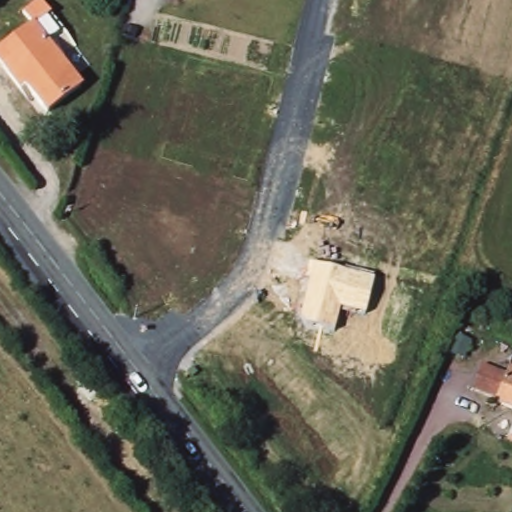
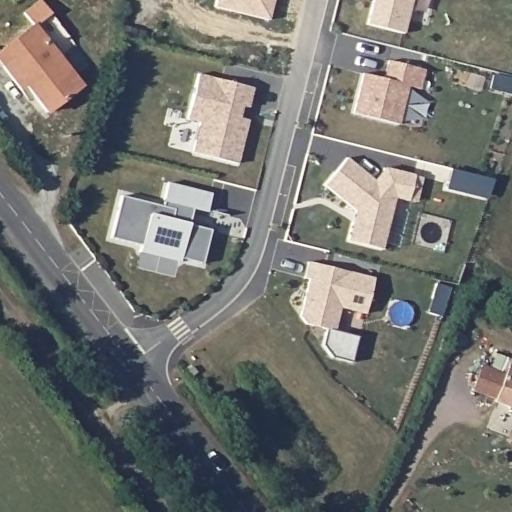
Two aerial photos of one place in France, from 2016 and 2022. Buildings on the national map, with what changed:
unchanged [(33,25),(23,12),(40,0),(41,0),(51,14),(34,26),(81,86),(47,112),(26,86),(21,89),(0,63),(0,51),(33,25)]
new [(374,0),(413,0),(404,33),(368,24),(374,0)]
new [(363,73),(384,79),(389,61),(425,70),(420,89),(408,86),(398,125),(353,113),(363,73)]
new [(254,88),(249,107),(243,106),(240,118),(249,120),(238,164),(193,152),(201,122),(188,119),(199,74),(254,88)]
new [(324,186),(346,159),(374,181),(385,168),(414,176),(408,201),(394,198),(381,250),(348,241),(352,223),(355,211),(324,186)]
new [(110,237),(121,195),(161,206),(163,200),(167,183),(211,194),(206,211),(192,208),(188,224),(210,230),(202,263),(180,258),(179,262),(139,252),(140,248),(141,245),(110,237)]
unchanged [(365,313),(339,308),(334,328),(300,320),(309,281),(305,280),(309,264),(374,278),(365,313)]
unchanged [(509,365),(512,367),(512,407),(495,401),(509,365)]

